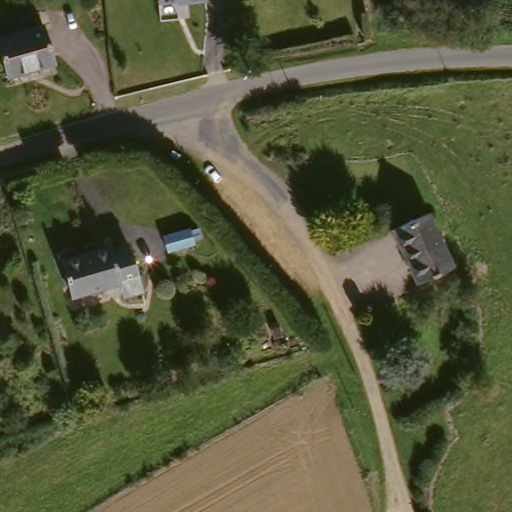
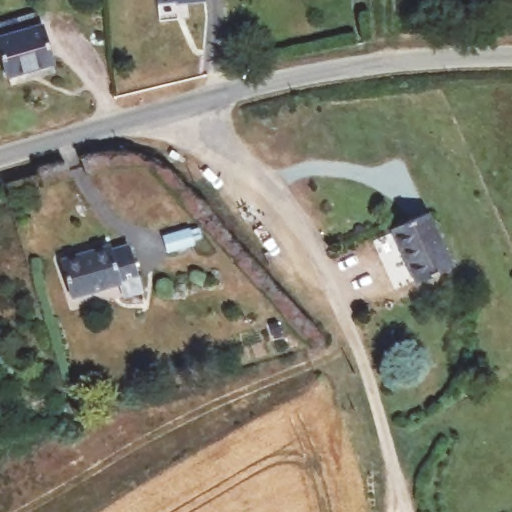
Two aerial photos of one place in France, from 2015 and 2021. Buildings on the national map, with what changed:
unchanged [(159,1),(158,0),(172,0),(159,1)]
unchanged [(185,2),(185,0),(206,0),(206,1),(185,2)]
unchanged [(0,62),(0,19),(32,9),(48,62),(4,75),(0,62)]
unchanged [(454,268),(420,283),(395,228),(429,213),(454,268)]
unchanged [(195,238),(199,255),(172,260),(169,244),(195,238)]
unchanged [(110,242),(111,250),(130,246),(139,291),(124,294),(121,278),(68,290),(60,254),(110,242)]

